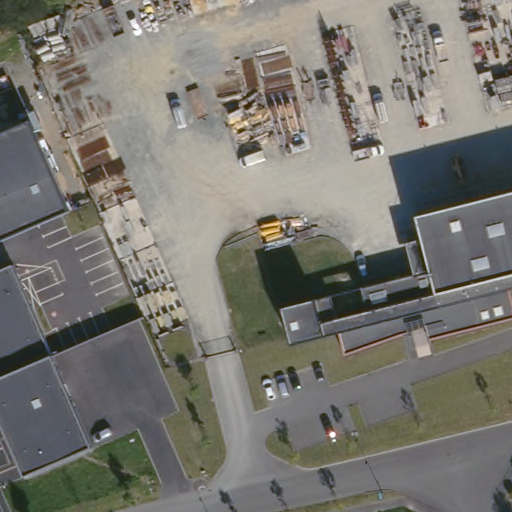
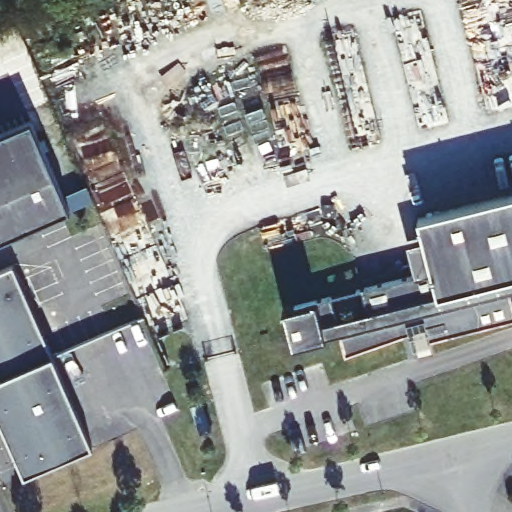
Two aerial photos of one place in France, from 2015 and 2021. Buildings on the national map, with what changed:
unchanged [(69,215),(0,245),(0,135),(30,123),(69,215)]
unchanged [(508,276),(512,297),(512,320),(428,341),(423,330),(340,353),(337,332),(288,345),(280,310),(325,297),(332,321),(367,311),(363,295),(415,277),(405,244),(417,237),(412,220),(512,194),(512,275),(508,276)]
unchanged [(51,357),(91,447),(24,477),(0,423),(0,272),(12,266),(51,357)]

